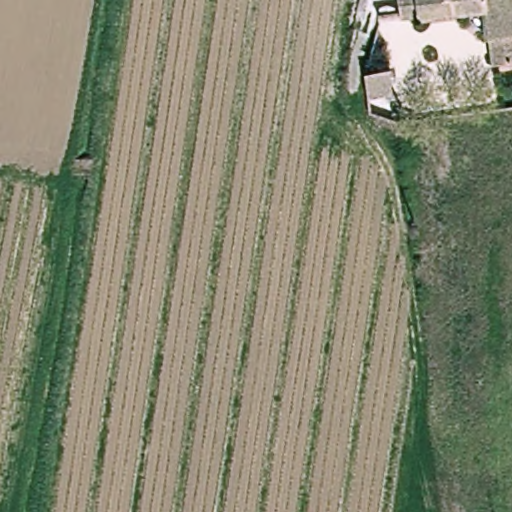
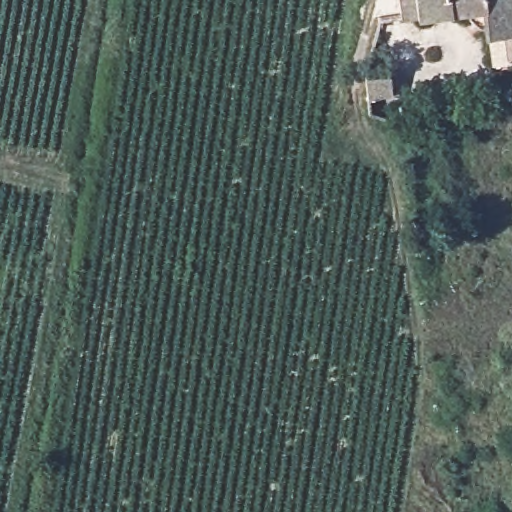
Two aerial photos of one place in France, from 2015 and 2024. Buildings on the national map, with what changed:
unchanged [(495,34),(488,35),(484,7),(418,17),(417,12),(403,15),(400,0),(512,0),(512,63),(499,65),(495,34)]
unchanged [(367,74),(391,73),(392,98),(367,99),(367,74)]

